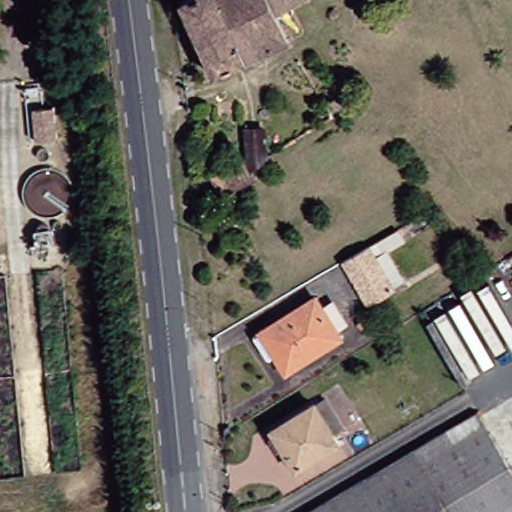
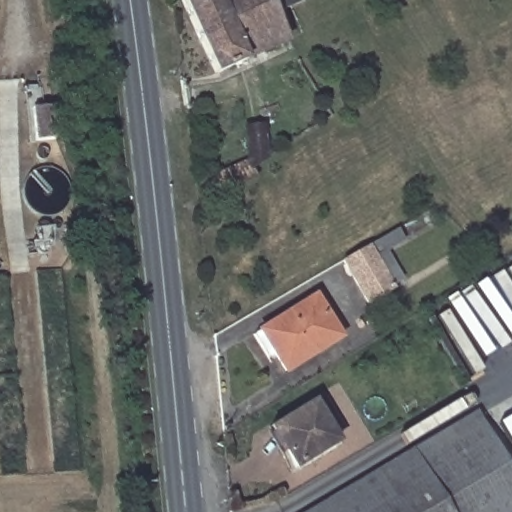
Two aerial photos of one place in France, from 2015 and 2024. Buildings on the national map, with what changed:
unchanged [(279,40),(205,69),(179,0),(294,0),(269,11),(279,40)]
unchanged [(51,104),(54,137),(34,139),(31,106),(51,104)]
unchanged [(250,151),(251,162),(212,177),(208,164),(244,146),(243,117),(256,116),(258,146),(250,151)]
unchanged [(330,264),(354,250),(392,228),(398,239),(362,262),(379,290),(356,305),(330,264)]
unchanged [(264,324),(303,300),(311,295),(316,302),(336,335),(283,368),(272,351),(258,328),(264,324)]
unchanged [(262,435),(267,432),(265,428),(308,403),(310,407),(321,401),(339,430),(328,437),(333,445),(292,471),(287,473),(262,435)]
unchanged [(471,406),(512,474),(512,503),(498,512),(467,512),(422,436),(471,406)]
unchanged [(296,512),(422,436),(467,512),(296,512)]

